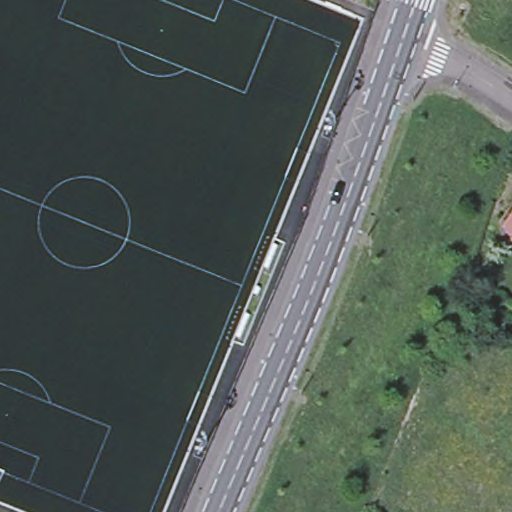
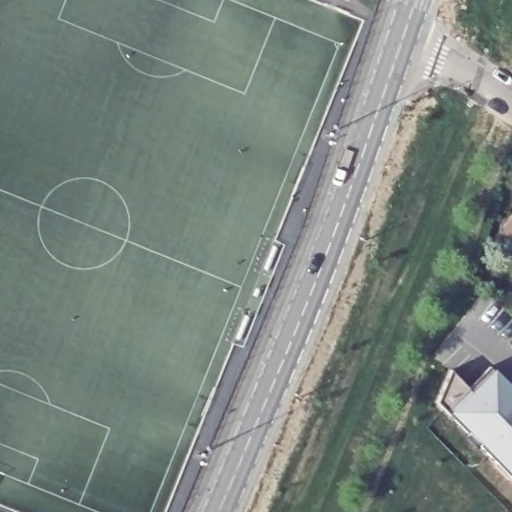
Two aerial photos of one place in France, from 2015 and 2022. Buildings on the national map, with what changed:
unchanged [(512,218),(512,237),(503,231),(512,218)]
new [(512,348),(511,348),(512,347),(512,348)]
new [(497,466),(480,447),(476,451),(464,438),(467,436),(437,404),(450,372),(468,389),(490,368),(512,392),(512,481),(510,478),(507,482),(494,468),(497,466)]

